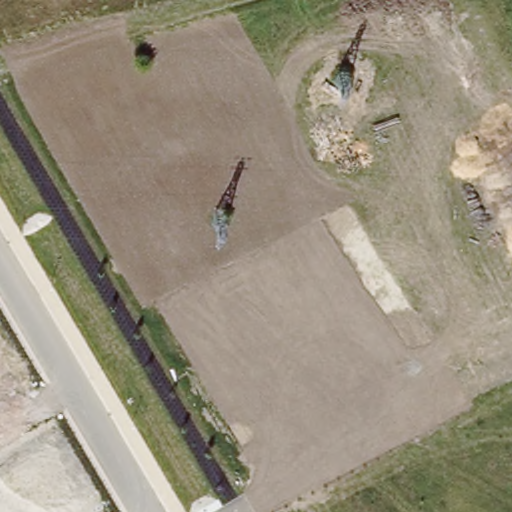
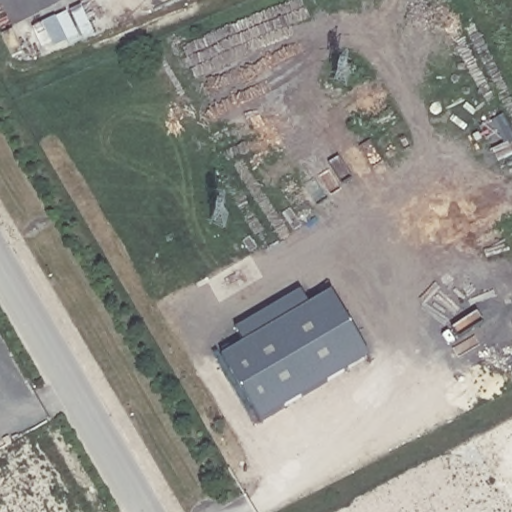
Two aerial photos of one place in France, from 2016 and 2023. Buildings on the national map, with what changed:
new [(260,422),(223,355),(245,343),(237,329),(302,291),(310,306),(331,293),(370,357),(260,422)]

